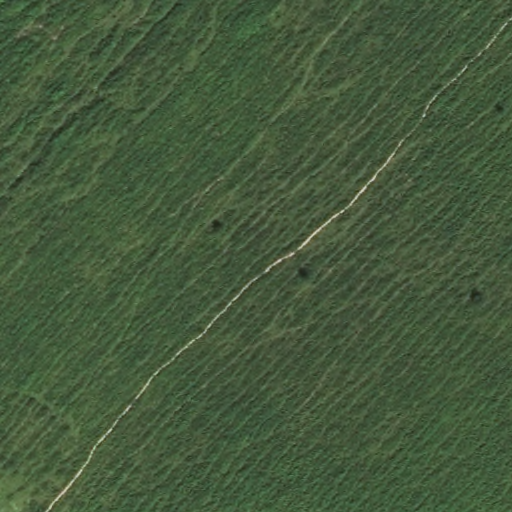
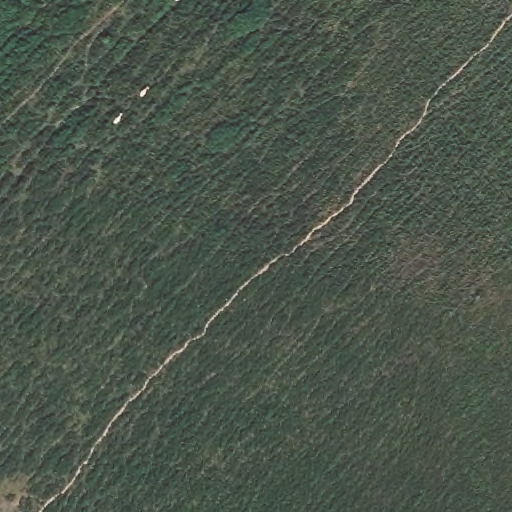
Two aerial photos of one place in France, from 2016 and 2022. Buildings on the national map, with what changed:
[]

